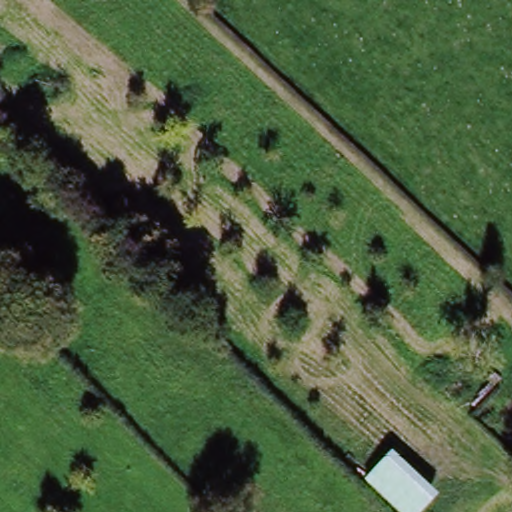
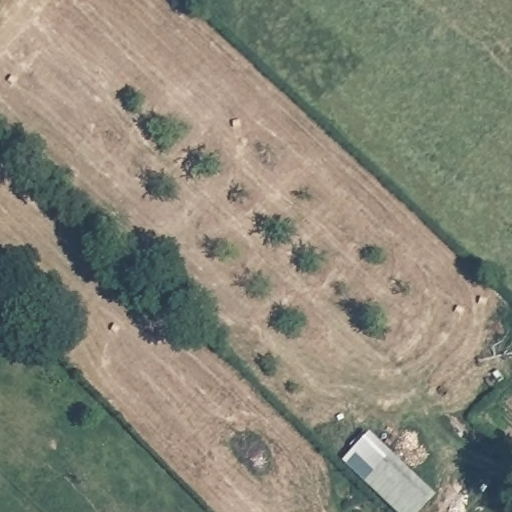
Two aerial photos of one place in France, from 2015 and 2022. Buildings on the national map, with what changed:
new [(364,483),(342,462),(370,431),(392,452),(365,480),(364,483)]
unchanged [(422,512),(398,512),(365,480),(392,452),(437,495),(422,512)]

